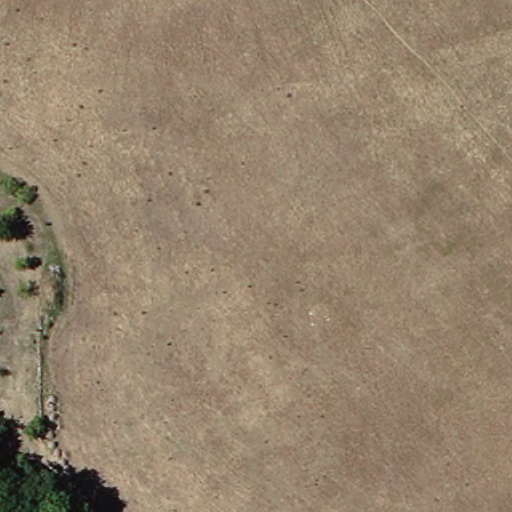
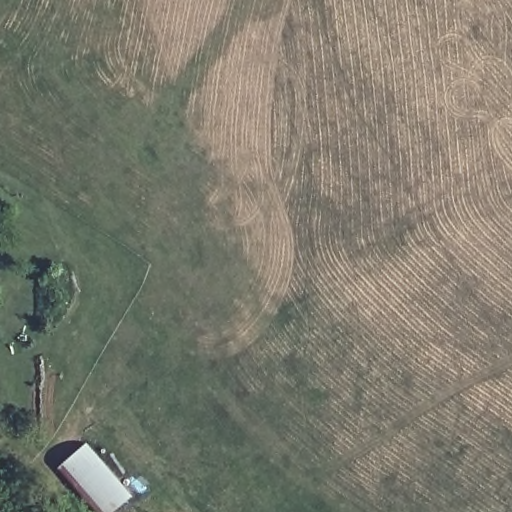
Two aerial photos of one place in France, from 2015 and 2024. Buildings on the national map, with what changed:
new [(116,512),(98,512),(60,469),(86,444),(131,498),(116,512)]

